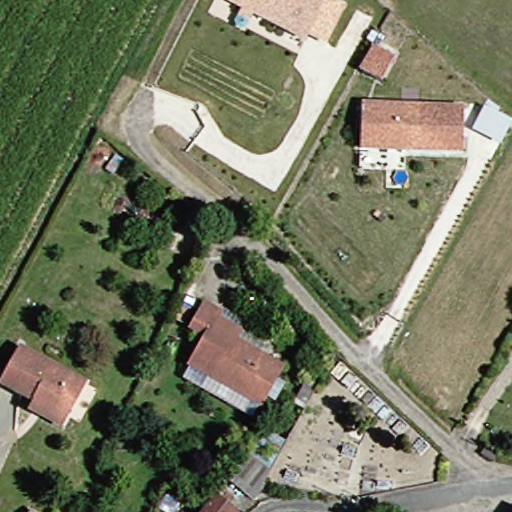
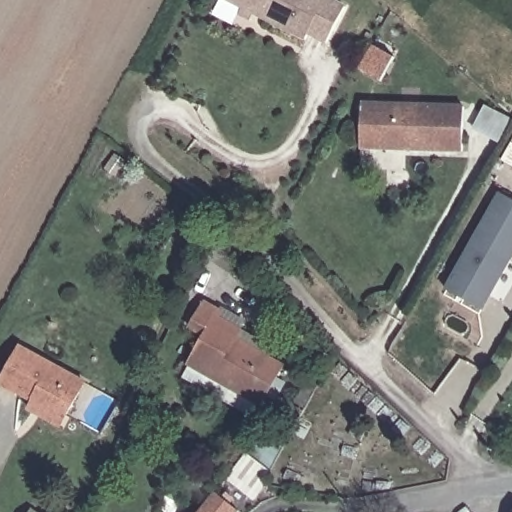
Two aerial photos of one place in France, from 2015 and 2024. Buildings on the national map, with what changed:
unchanged [(303,37),(227,0),(322,0),(303,37)]
unchanged [(370,43),(387,52),(374,76),(357,67),(370,43)]
unchanged [(360,128),(361,105),(463,107),(461,151),(379,149),(359,149),(360,128)]
new [(512,142),(512,166),(503,161),(512,142)]
new [(512,200),(512,259),(483,311),(445,290),(500,194),(512,200)]
unchanged [(222,316),(245,331),(239,339),(288,370),(268,402),(197,357),(222,316)]
unchanged [(90,381),(76,415),(44,401),(42,406),(7,390),(24,352),(90,381)]
unchanged [(265,487),(276,490),(266,498),(252,489),(246,495),(234,486),(258,461),(272,475),(265,487)]
unchanged [(227,495),(247,511),(246,512),(209,512),(213,508),(227,495)]

